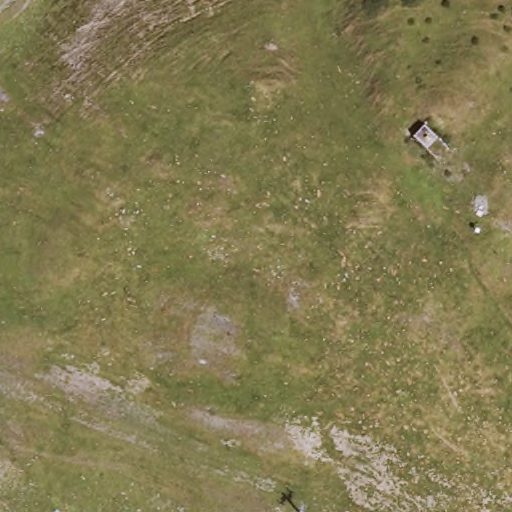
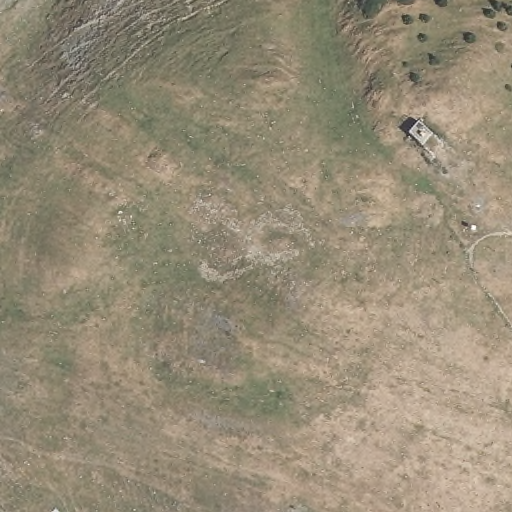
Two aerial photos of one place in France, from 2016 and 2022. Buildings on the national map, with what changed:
unchanged [(423,128),(439,144),(426,155),(410,141),(423,128)]

